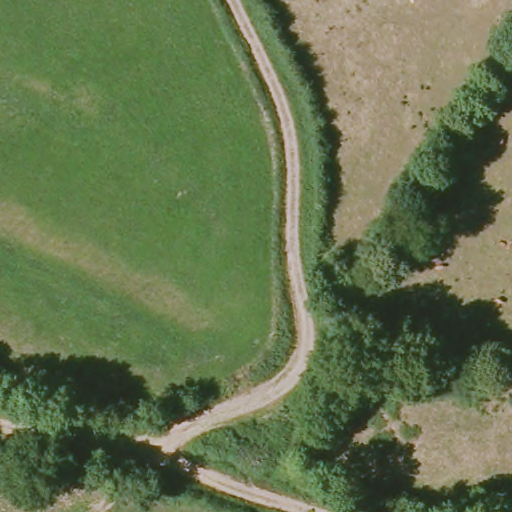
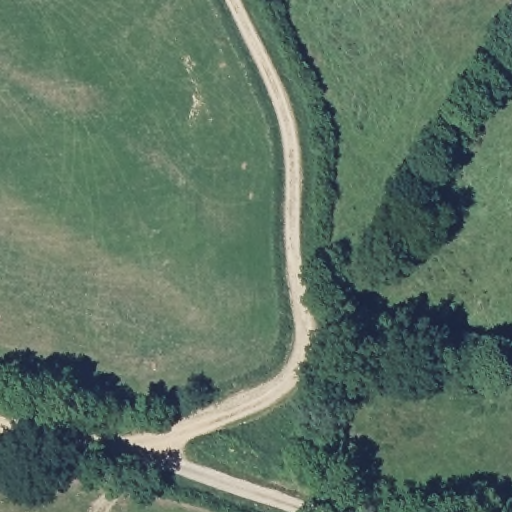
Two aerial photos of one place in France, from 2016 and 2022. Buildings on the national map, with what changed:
[]

